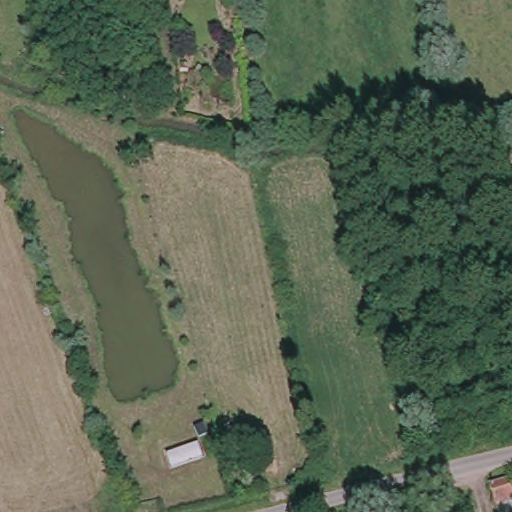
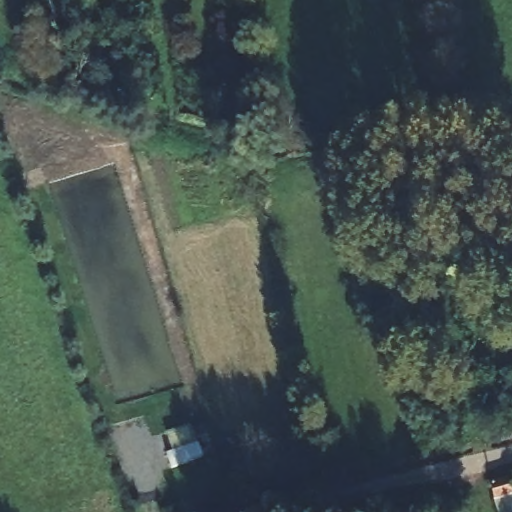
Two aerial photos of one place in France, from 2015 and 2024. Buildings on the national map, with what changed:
unchanged [(206,458),(169,472),(164,455),(199,443),(206,458)]
unchanged [(511,480),(512,483),(512,498),(494,503),(490,485),(511,480)]

